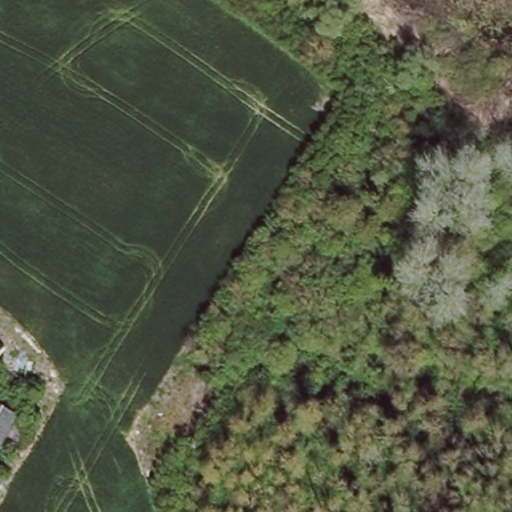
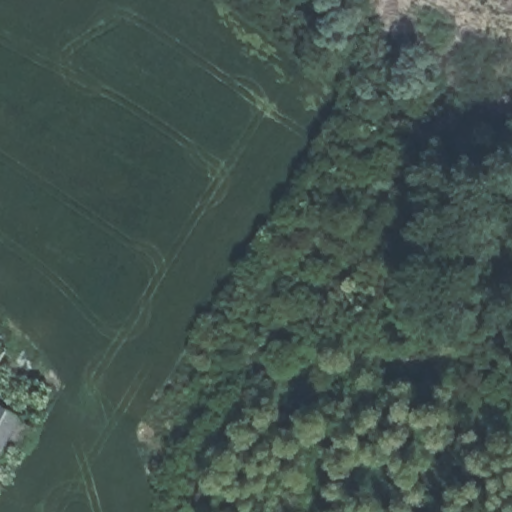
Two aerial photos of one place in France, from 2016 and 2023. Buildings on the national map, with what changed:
unchanged [(0,448),(0,405),(18,415),(0,448)]

